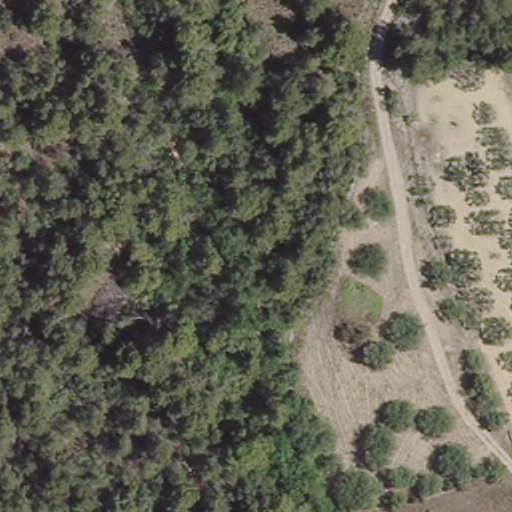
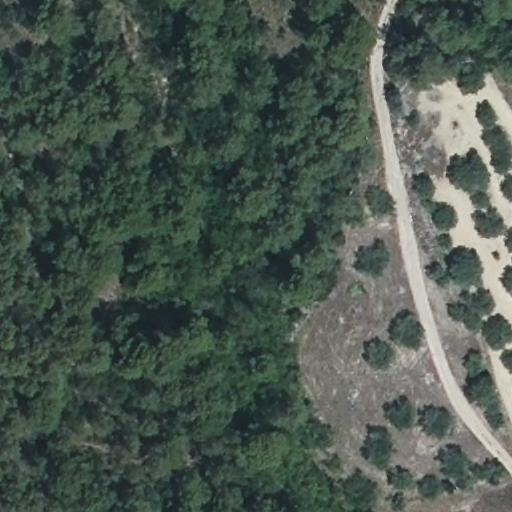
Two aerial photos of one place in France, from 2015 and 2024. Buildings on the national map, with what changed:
unchanged [(98,392),(111,390),(115,409),(100,410),(98,392)]

